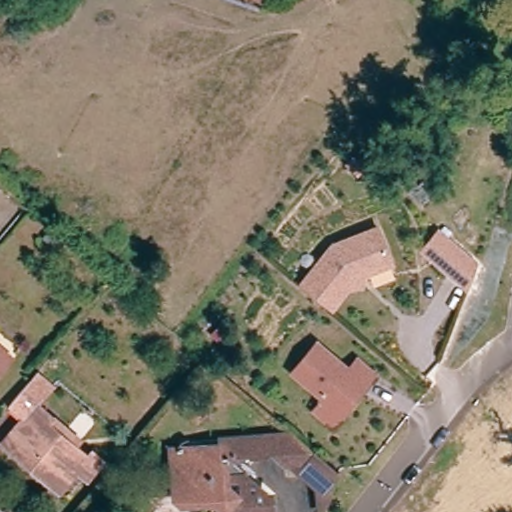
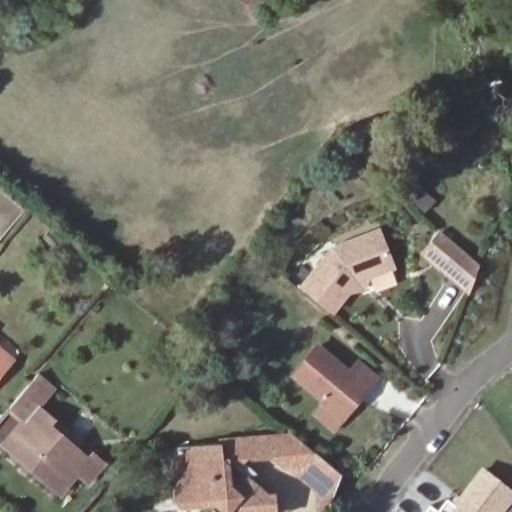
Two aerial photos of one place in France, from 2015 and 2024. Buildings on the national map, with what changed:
unchanged [(345,287),(327,308),(298,283),(331,244),(376,228),(384,248),(390,264),(386,265),(366,273),(359,285),(345,287)]
unchanged [(477,263),(468,288),(430,256),(431,253),(440,231),(477,263)]
unchanged [(217,339),(210,333),(219,322),(226,329),(217,339)]
unchanged [(16,359),(0,379),(0,345),(16,359)]
unchanged [(312,413),(321,401),(290,374),(315,347),(345,373),(355,363),(373,379),(363,389),(331,429),(312,413)]
unchanged [(0,451),(0,445),(20,422),(5,411),(36,372),(56,385),(39,404),(58,419),(54,426),(93,459),(60,499),(0,451)]
new [(512,403),(512,406),(510,404),(512,403)]
unchanged [(340,476),(329,512),(317,512),(319,491),(285,466),(272,459),(251,459),(250,446),(221,448),(220,434),(288,430),(291,435),(307,451),(340,476)]
unchanged [(251,460),(242,474),(230,469),(224,480),(233,488),(239,487),(265,499),(266,512),(221,512),(215,507),(195,509),(195,502),(175,503),(171,452),(221,448),(250,446),(251,460)]
new [(428,502),(436,508),(445,496),(454,503),(481,467),(511,490),(494,512),(421,512),(428,502)]

